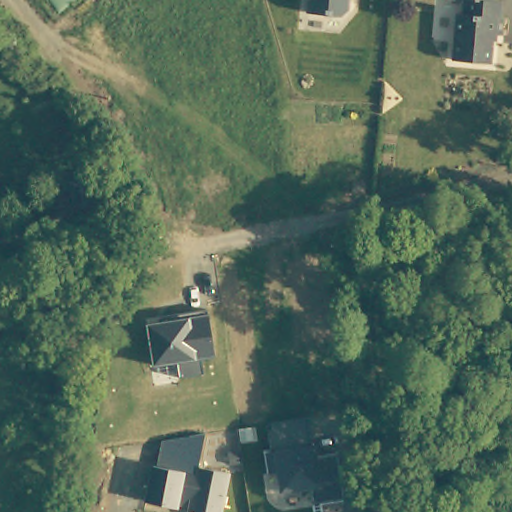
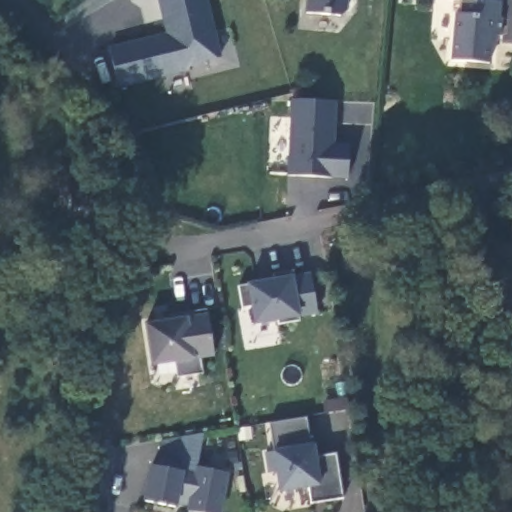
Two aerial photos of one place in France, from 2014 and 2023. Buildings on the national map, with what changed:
new [(192,64),(189,70),(120,88),(110,47),(167,32),(159,0),(209,0),(222,56),(192,64)]
unchanged [(341,16),(305,12),(306,0),(349,0),(347,11),(341,16)]
unchanged [(508,15),(506,31),(496,30),(493,61),(454,57),(459,13),(466,14),(468,0),(505,0),(503,14),(508,15)]
new [(348,178),(288,175),(292,98),(339,100),(335,142),(351,143),(348,178)]
new [(432,300),(440,299),(442,310),(445,329),(414,333),(411,314),(433,311),(432,300)]
unchanged [(216,356),(200,358),(203,374),(177,378),(175,361),(152,364),(145,322),(179,317),(179,314),(208,309),(216,356)]
unchanged [(312,504),(310,488),(278,492),(275,471),(268,473),(265,449),(273,447),(270,424),(307,418),(311,443),(315,443),(318,457),(336,455),(343,500),(312,504)]
unchanged [(188,508),(145,501),(153,464),(157,465),(161,442),(204,434),(198,467),(230,473),(220,512),(190,512),(188,508)]

